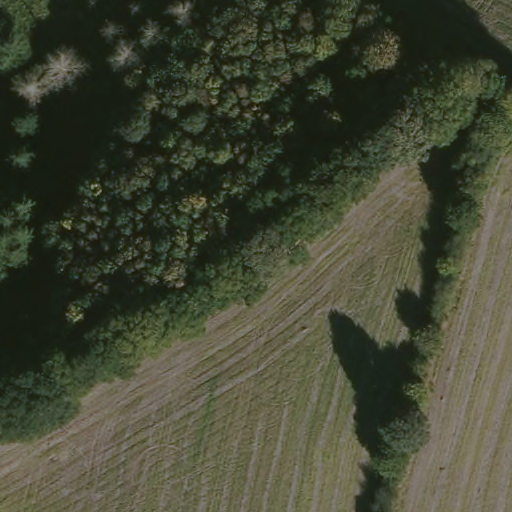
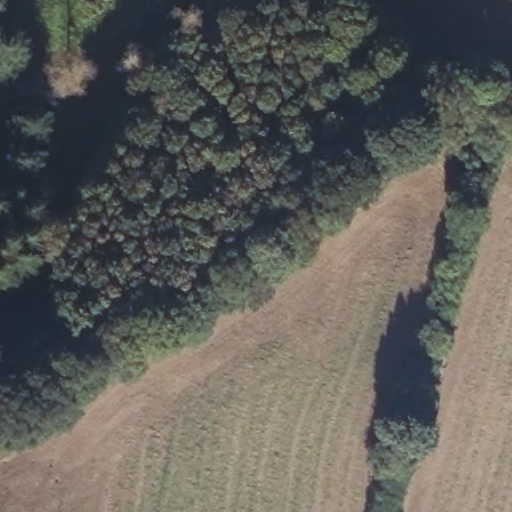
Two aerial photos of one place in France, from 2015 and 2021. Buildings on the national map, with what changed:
[]

